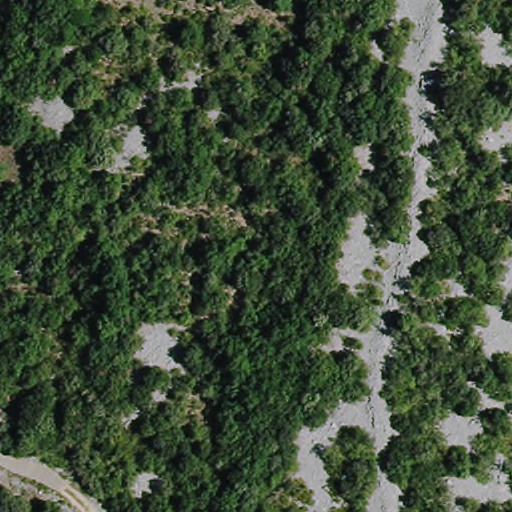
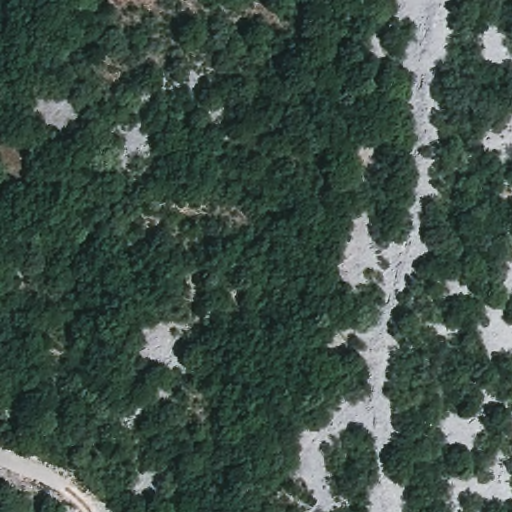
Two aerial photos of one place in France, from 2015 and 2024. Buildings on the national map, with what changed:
[]

